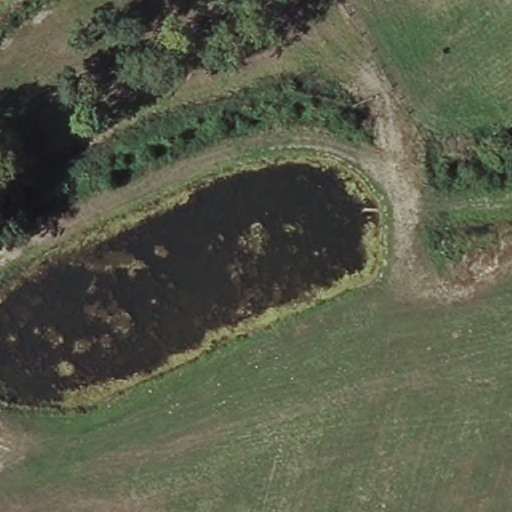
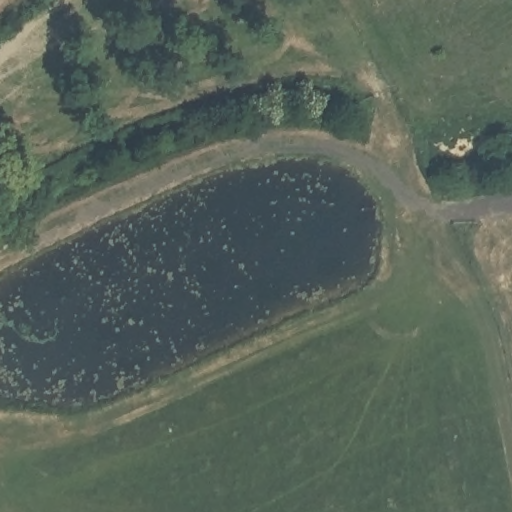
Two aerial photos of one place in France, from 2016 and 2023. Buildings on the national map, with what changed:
[]

